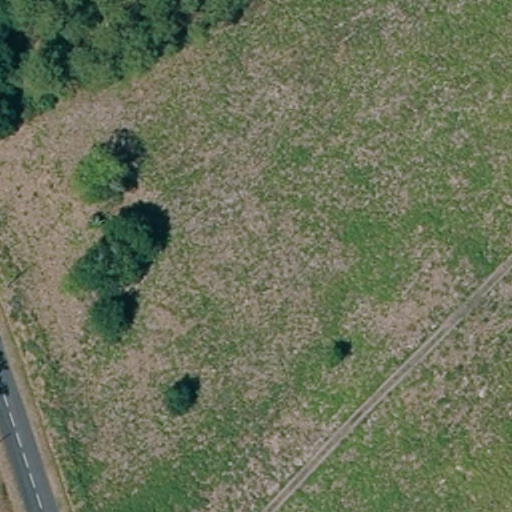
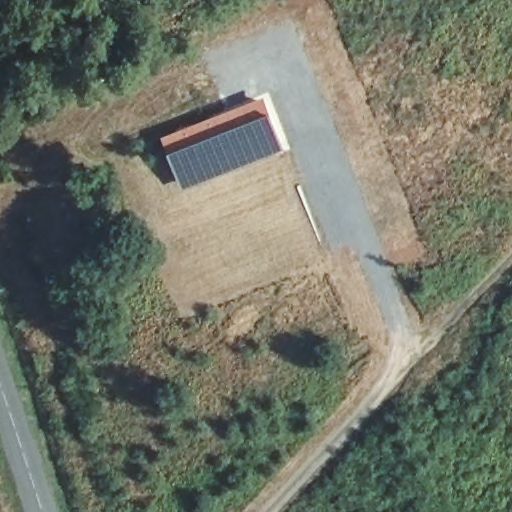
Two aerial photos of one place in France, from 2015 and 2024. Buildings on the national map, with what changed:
new [(265,95),(287,149),(181,192),(159,136),(265,95)]

